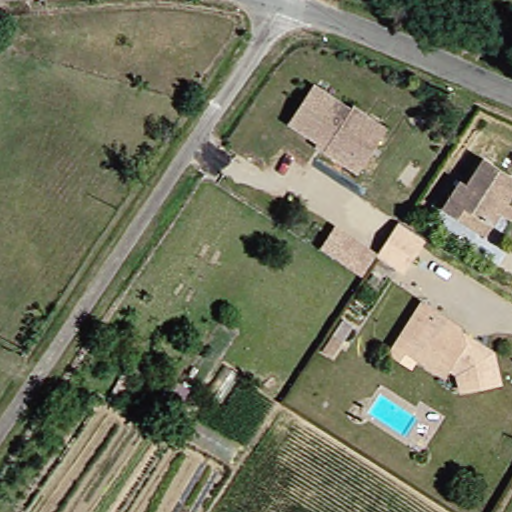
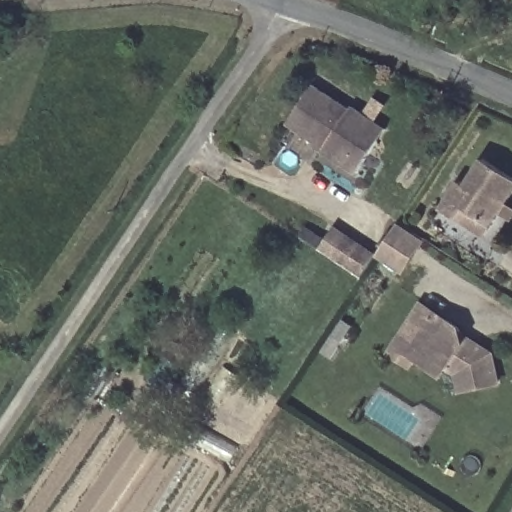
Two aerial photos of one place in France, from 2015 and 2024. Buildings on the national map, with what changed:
unchanged [(356,164),(322,141),(324,139),(287,114),(313,75),(349,100),(351,98),(371,111),(386,121),(377,133),(356,164)]
unchanged [(449,217),(432,207),(450,179),(458,184),(474,159),(510,182),(483,224),(477,234),(449,217)]
unchanged [(359,268),(352,264),(317,240),(332,218),(373,246),(359,268)]
unchanged [(396,224),(421,242),(401,270),(376,254),(396,224)]
unchanged [(405,349),(399,357),(380,344),(385,337),(411,296),(449,321),(454,335),(462,340),(471,335),(484,344),(490,373),(453,381),(450,368),(437,359),(432,367),(405,349)]
unchanged [(335,315),(345,323),(334,338),(324,331),(335,315)]

